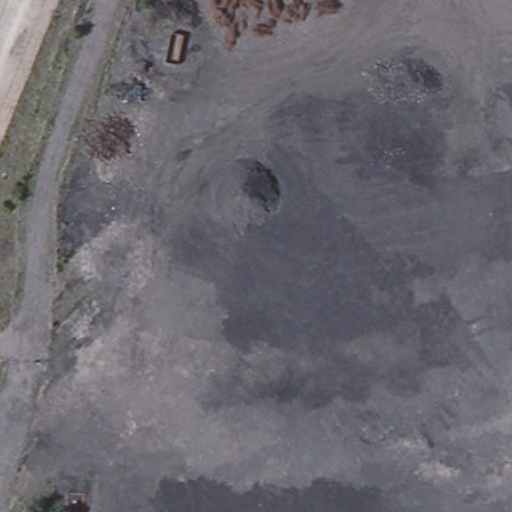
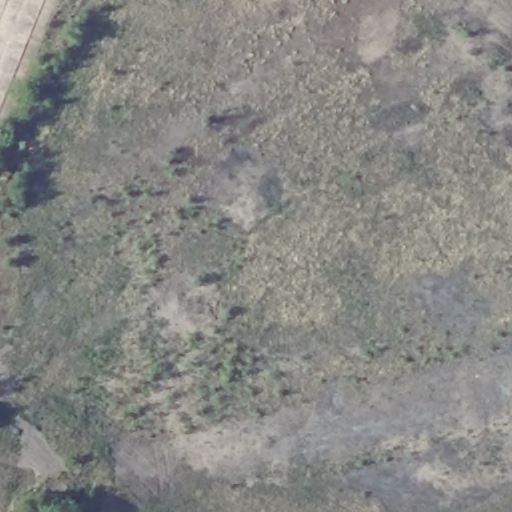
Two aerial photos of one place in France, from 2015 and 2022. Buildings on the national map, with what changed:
[]

